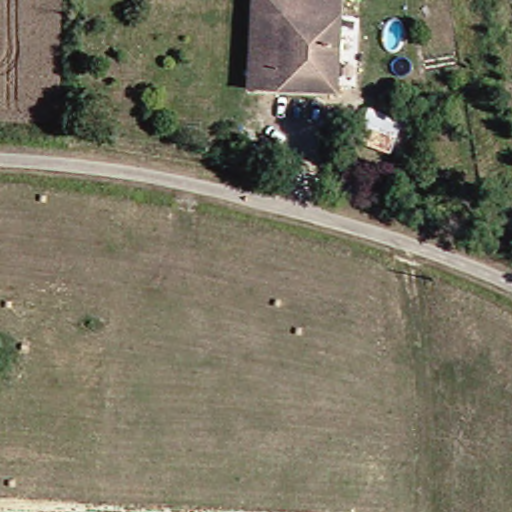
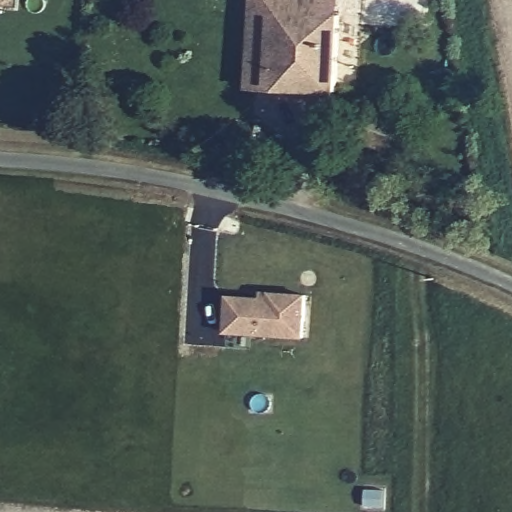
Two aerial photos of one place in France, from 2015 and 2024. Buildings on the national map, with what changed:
new [(0,1),(0,0),(5,0),(5,1),(0,1)]
unchanged [(333,0),(332,11),(273,9),(274,0),(333,0)]
unchanged [(332,11),(327,101),(316,101),(316,86),(242,85),(243,7),(273,9),(332,11)]
unchanged [(353,135),(363,115),(402,132),(395,150),(353,135)]
new [(257,300),(258,295),(267,295),(301,298),(298,338),(223,332),(226,298),(257,300)]

